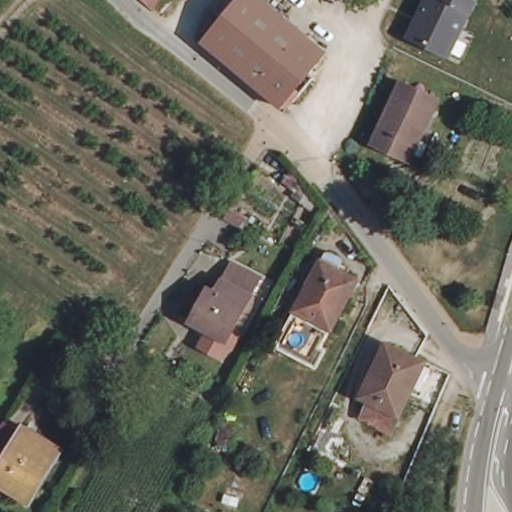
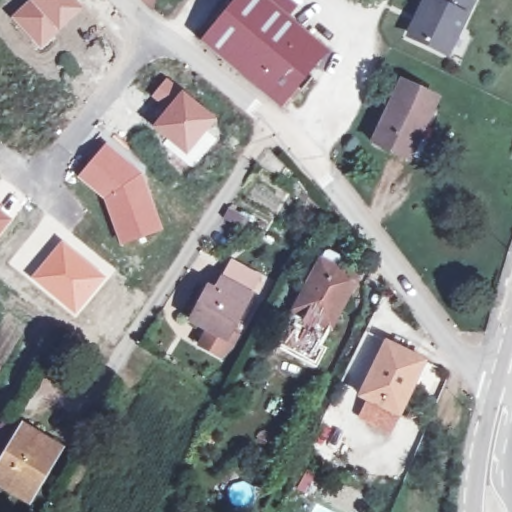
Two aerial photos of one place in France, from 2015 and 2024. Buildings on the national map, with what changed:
new [(28,0),(79,0),(77,2),(84,10),(40,49),(10,17),(28,0)]
new [(151,9),(142,0),(156,0),(151,9)]
unchanged [(257,43),(243,72),(203,36),(237,0),(266,0),(327,57),(316,68),(257,43)]
unchanged [(476,1),(450,57),(407,35),(424,0),(430,0),(432,1),(432,0),(473,0),(476,1)]
unchanged [(257,43),(316,68),(281,105),(243,72),(257,43)]
new [(166,77),(219,120),(186,157),(150,126),(164,110),(149,97),(166,77)]
unchanged [(443,99),(413,162),(376,145),(406,81),(443,99)]
new [(105,143),(142,175),(156,209),(164,232),(120,248),(103,200),(76,177),(105,143)]
new [(15,219),(0,237),(0,204),(15,219)]
new [(61,239),(108,279),(75,318),(28,278),(61,239)]
unchanged [(299,328),(306,315),(294,309),(326,247),(346,257),(339,270),(359,281),(333,330),(326,342),(299,328)]
unchanged [(191,305),(198,309),(201,304),(208,308),(224,277),(252,292),(218,355),(183,336),(187,329),(179,325),(191,305)]
unchanged [(367,417),(373,403),(360,398),(386,339),(426,357),(394,429),(367,417)]
unchanged [(350,440),(338,434),(344,419),(356,424),(350,440)]
unchanged [(24,500),(0,485),(0,465),(20,429),(54,448),(24,500)]

